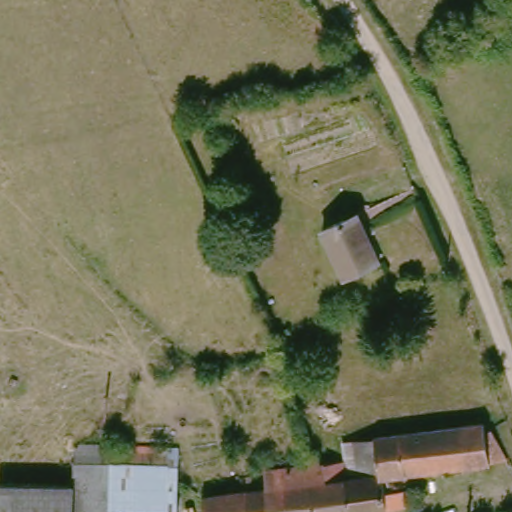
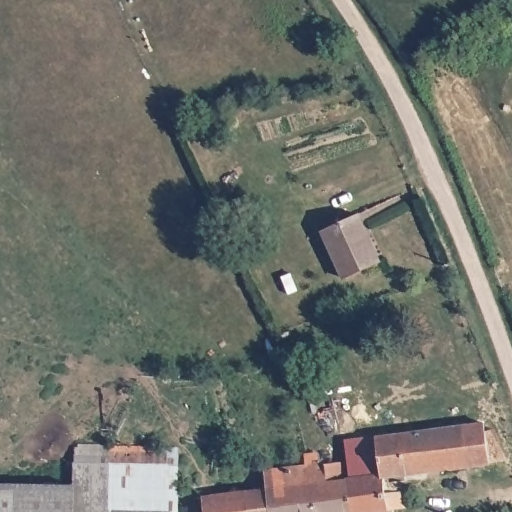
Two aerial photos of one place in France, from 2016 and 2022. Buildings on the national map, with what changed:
unchanged [(374,259),(334,279),(310,229),(350,209),(374,259)]
unchanged [(372,437),(476,423),(479,427),(487,427),(502,460),(377,475),(372,437)]
unchanged [(372,437),(377,475),(342,479),(340,461),(337,442),(372,437)]
unchanged [(70,444),(177,444),(176,467),(174,511),(166,511),(166,512),(69,512),(70,483),(70,444)]
unchanged [(342,479),(346,512),(202,512),(200,496),(260,489),(258,469),(300,465),(299,454),(315,453),(317,462),(340,461),(342,479)]
unchanged [(380,492),(404,489),(405,504),(382,506),(383,512),(346,512),(342,479),(377,475),(380,492)]
unchanged [(69,512),(0,512),(0,483),(70,483),(69,512)]

